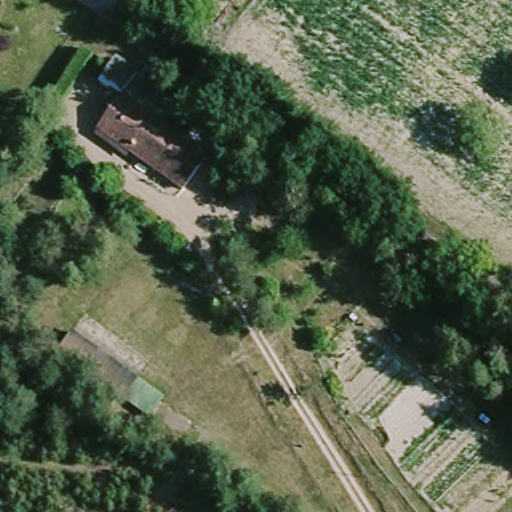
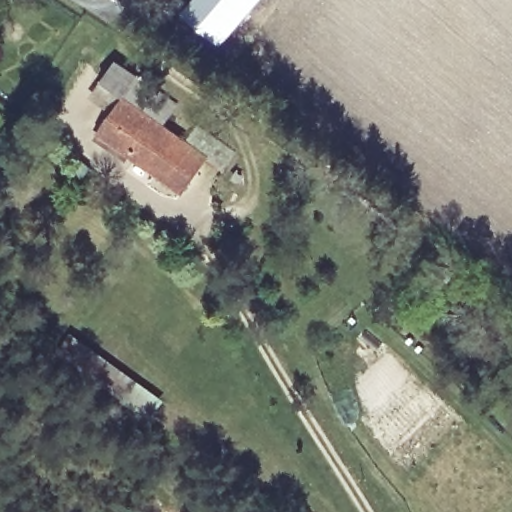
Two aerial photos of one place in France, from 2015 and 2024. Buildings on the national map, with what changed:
new [(218,43),(213,39),(182,13),(192,0),(254,0),(218,43)]
unchanged [(162,124),(192,146),(203,130),(235,154),(225,168),(211,158),(183,195),(115,143),(102,134),(115,117),(129,97),(105,80),(120,59),(144,77),(178,102),(162,124)]
unchanged [(70,337),(138,382),(124,401),(58,357),(70,337)]

